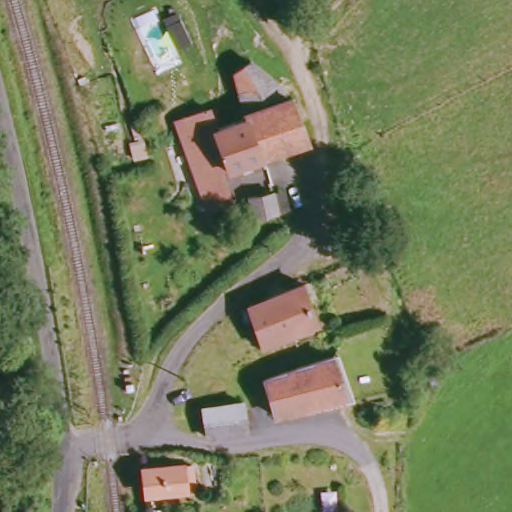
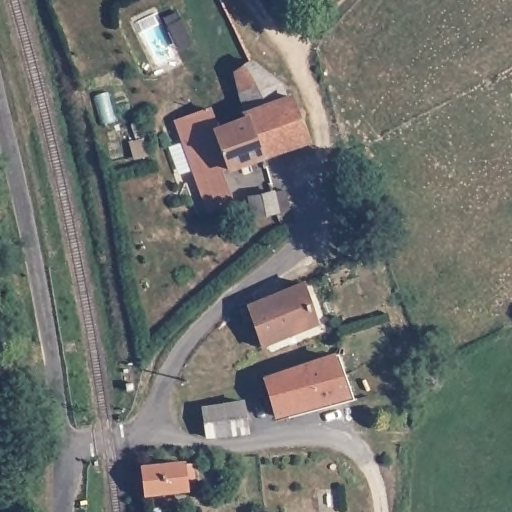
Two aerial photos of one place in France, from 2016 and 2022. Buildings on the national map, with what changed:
unchanged [(234,172),(232,166),(226,169),(236,199),(211,208),(181,124),(214,111),(224,131),(250,121),(248,116),(252,115),(235,75),(258,62),(295,99),(313,143),(234,172)]
unchanged [(278,193),(282,214),(258,220),(254,197),(278,193)]
unchanged [(261,348),(249,307),(302,285),(314,326),(261,348)]
unchanged [(274,419),(264,380),(332,357),(347,397),(274,419)]
unchanged [(242,403),(247,433),(207,439),(202,407),(242,403)]
unchanged [(182,461),(182,463),(192,464),(195,487),(146,494),(142,466),(182,461)]
unchanged [(161,502),(163,512),(161,512),(148,512),(147,505),(161,502)]

